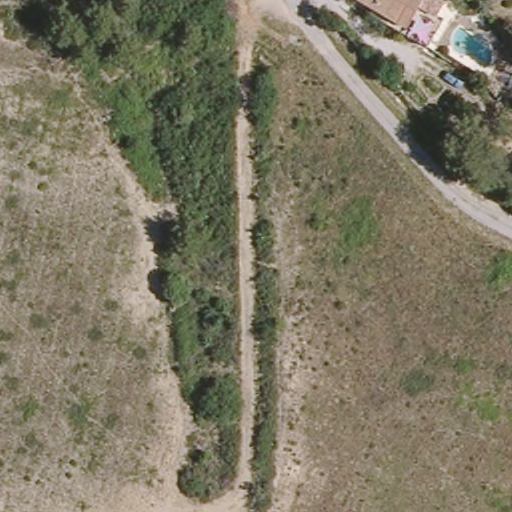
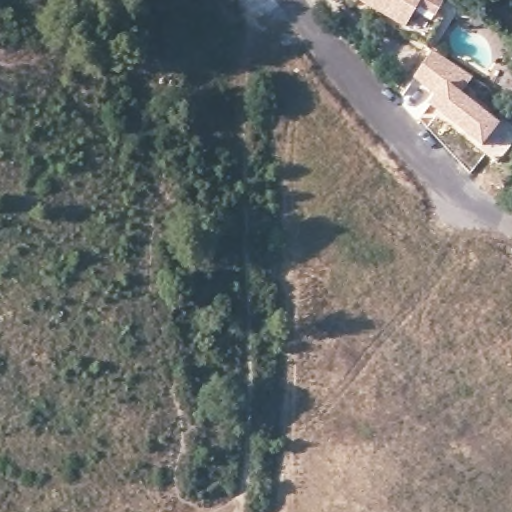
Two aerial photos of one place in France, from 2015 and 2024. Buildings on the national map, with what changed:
unchanged [(407,28),(357,0),(424,0),(407,28)]
new [(474,77),(463,93),(501,124),(483,147),(429,104),(435,95),(413,78),(433,51),(474,77)]

